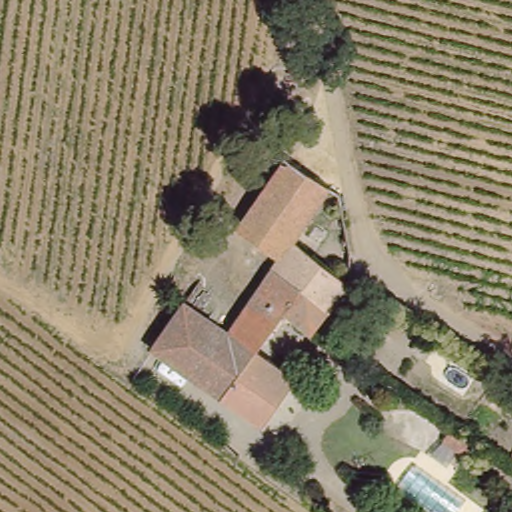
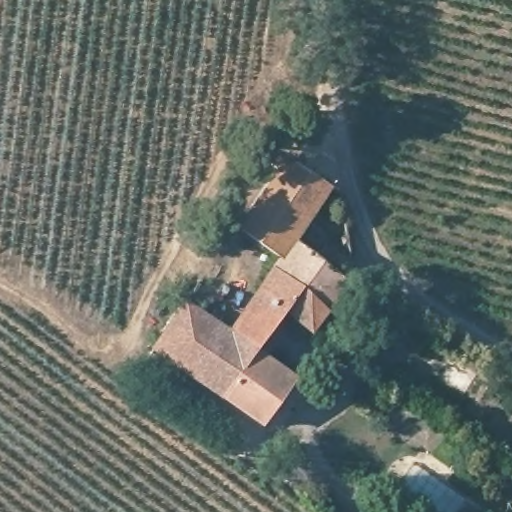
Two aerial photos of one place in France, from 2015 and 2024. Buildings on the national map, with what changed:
unchanged [(345,280),(303,329),(274,311),(248,346),(286,373),(255,421),(149,348),(181,300),(224,330),(277,259),(233,228),(282,158),(328,190),(291,239),(345,280)]
unchanged [(255,421),(286,373),(310,391),(277,437),(255,421)]

